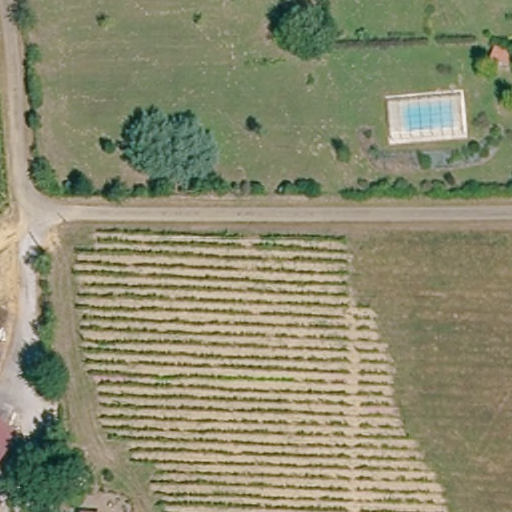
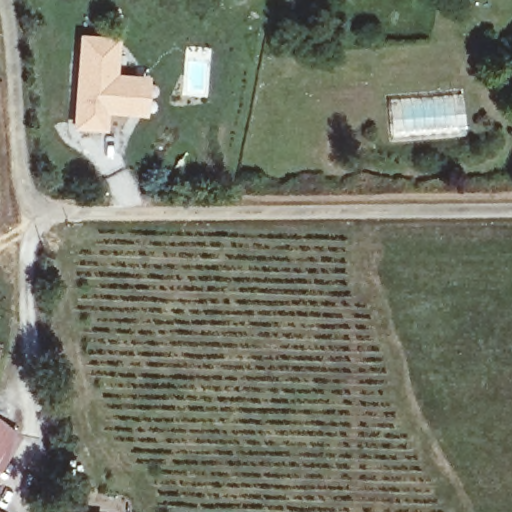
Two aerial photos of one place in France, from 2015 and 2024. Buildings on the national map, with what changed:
new [(78,32),(119,35),(116,72),(146,75),(143,116),(107,114),(104,131),(71,128),(78,32)]
unchanged [(495,75),(481,71),(487,57),(500,62),(495,75)]
unchanged [(7,425),(0,436),(0,420),(7,425)]

